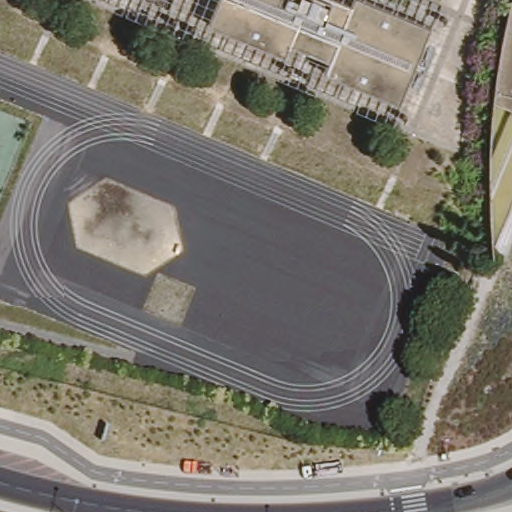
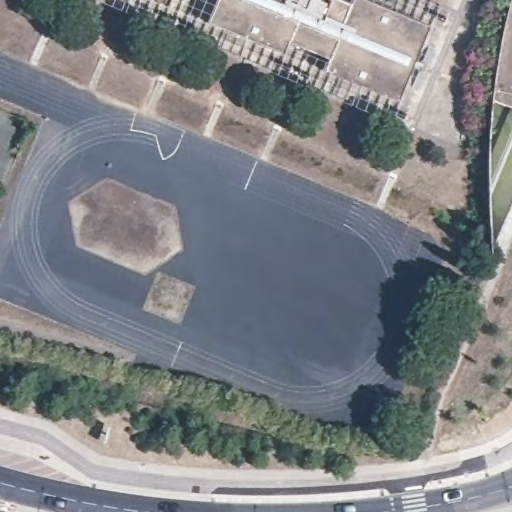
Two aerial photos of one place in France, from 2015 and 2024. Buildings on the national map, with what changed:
unchanged [(156,0),(170,0),(168,5),(156,0)]
unchanged [(342,0),(351,4),(353,0),(364,0),(428,26),(397,100),(323,69),(326,59),(288,42),(282,52),(208,22),(218,0),(342,0)]
unchanged [(494,89),(495,81),(495,74),(496,67),(498,59),(500,46),(502,38),(505,26),(507,14),(511,0),(512,0),(512,107),(492,99),(494,89)]

